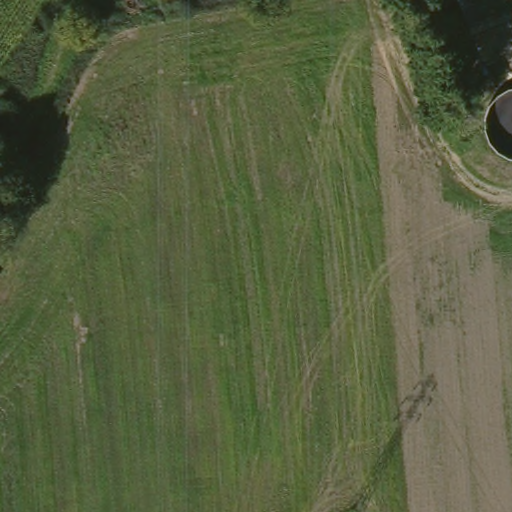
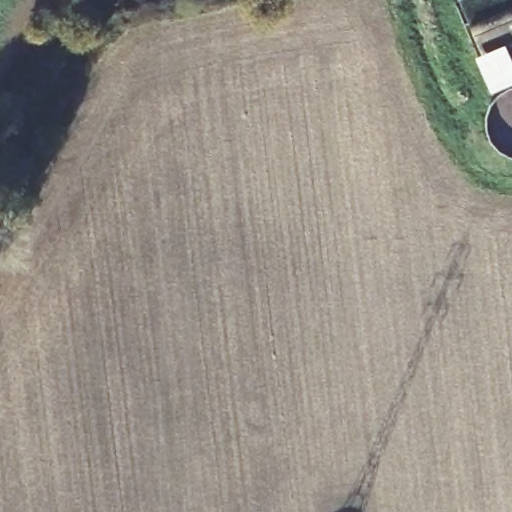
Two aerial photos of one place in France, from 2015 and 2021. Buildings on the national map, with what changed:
unchanged [(512,57),(503,35),(481,43),(465,0),(512,0),(512,57)]

